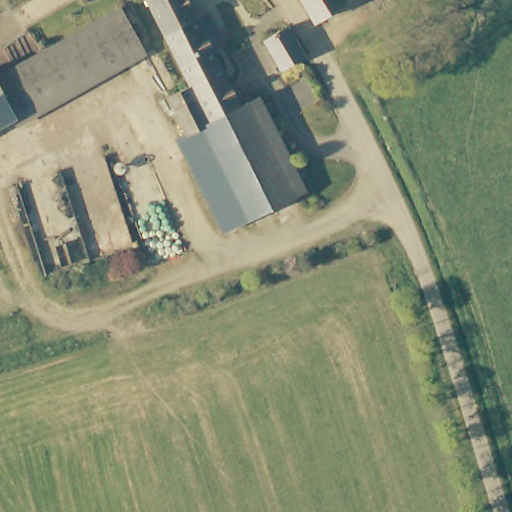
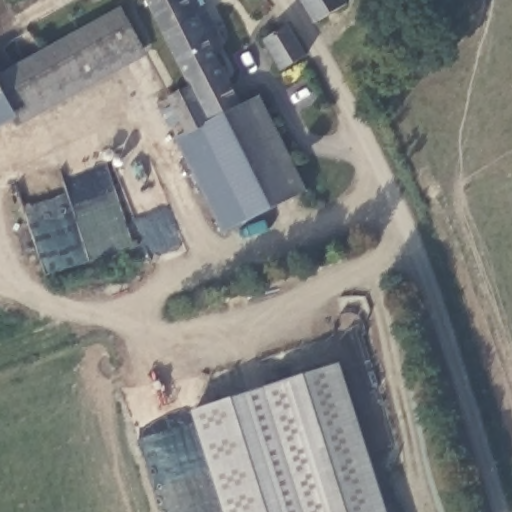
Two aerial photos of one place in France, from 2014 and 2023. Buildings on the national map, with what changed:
unchanged [(191,86),(169,42),(148,0),(189,0),(200,21),(210,16),(225,44),(213,50),(242,107),(209,123),(191,86)]
unchanged [(346,6),(316,23),(301,0),(343,0),(346,6)]
unchanged [(119,10),(148,57),(17,127),(13,122),(0,129),(0,77),(119,10)]
unchanged [(281,70),(264,43),(289,28),(306,55),(281,70)]
unchanged [(186,134),(169,97),(191,86),(209,123),(186,134)]
unchanged [(306,192),(224,233),(177,138),(186,134),(209,123),(242,107),(260,99),(306,192)]
new [(387,512),(223,512),(191,412),(341,364),(387,512)]

